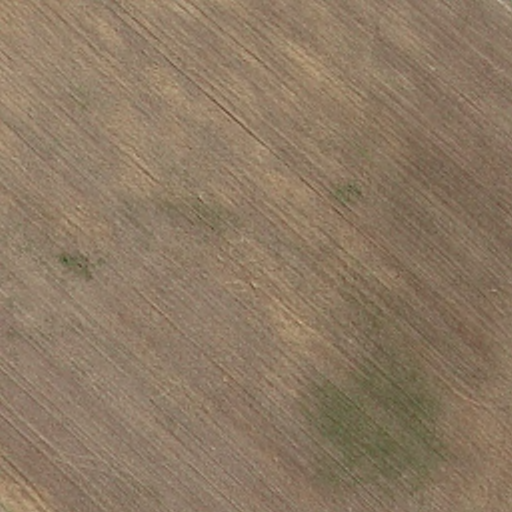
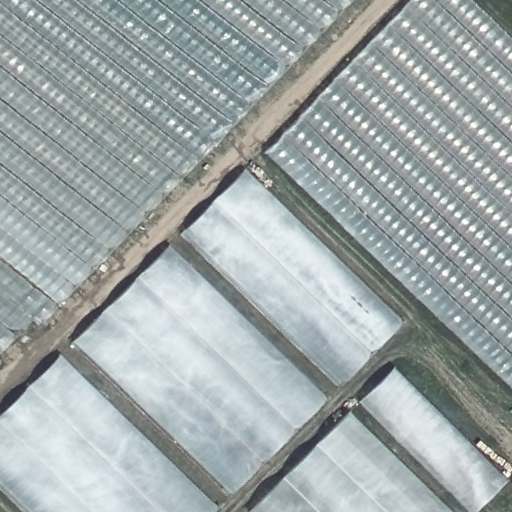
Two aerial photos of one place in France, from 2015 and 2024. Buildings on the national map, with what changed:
new [(4,364),(0,361),(0,0),(352,0),(4,364)]
new [(410,0),(471,0),(512,40),(512,395),(261,155),(410,0)]
new [(338,386),(179,236),(247,170),(400,322),(384,339),(338,386)]
new [(169,245),(324,400),(234,491),(70,342),(169,245)]
new [(213,512),(25,512),(0,488),(0,420),(58,358),(217,509),(213,512)]
new [(504,483),(473,512),(463,512),(356,403),(391,370),(504,483)]
new [(346,415),(447,512),(253,512),(252,510),(346,415)]

